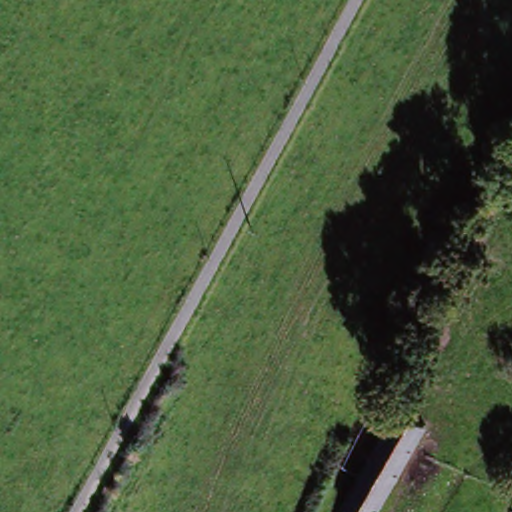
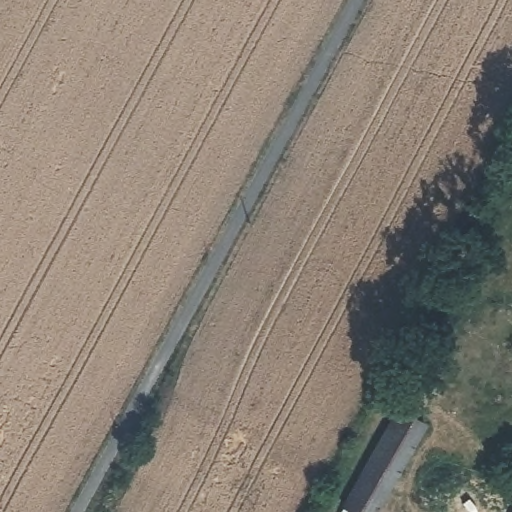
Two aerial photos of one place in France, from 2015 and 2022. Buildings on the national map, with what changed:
unchanged [(376,512),(341,512),(394,413),(421,427),(376,512)]

